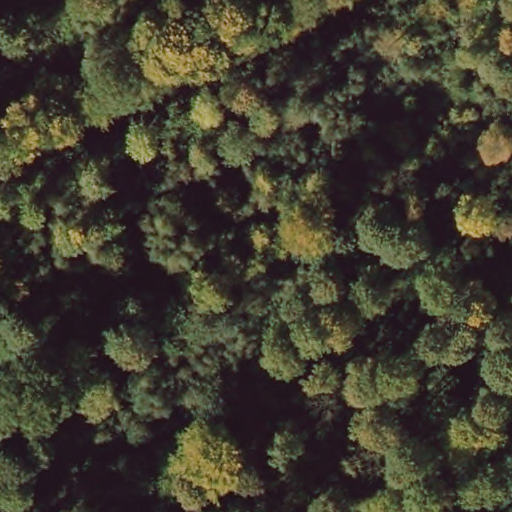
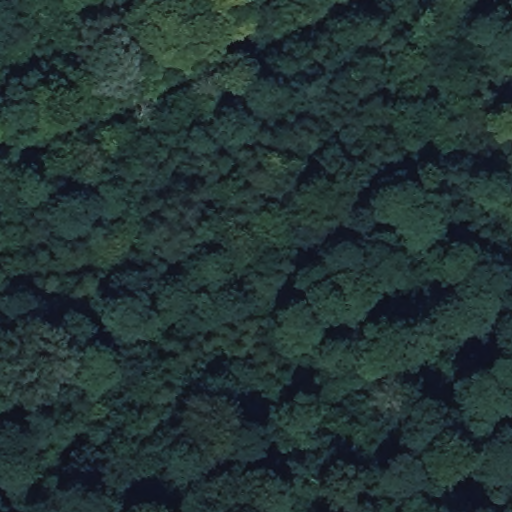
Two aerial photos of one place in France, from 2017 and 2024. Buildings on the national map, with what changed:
unchanged [(143,129),(129,137),(121,123),(136,115),(143,129)]

